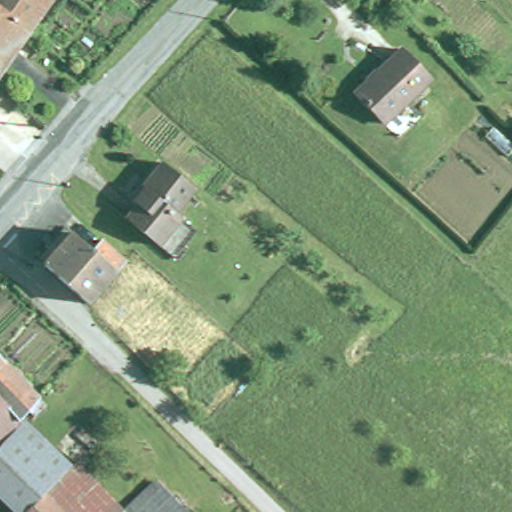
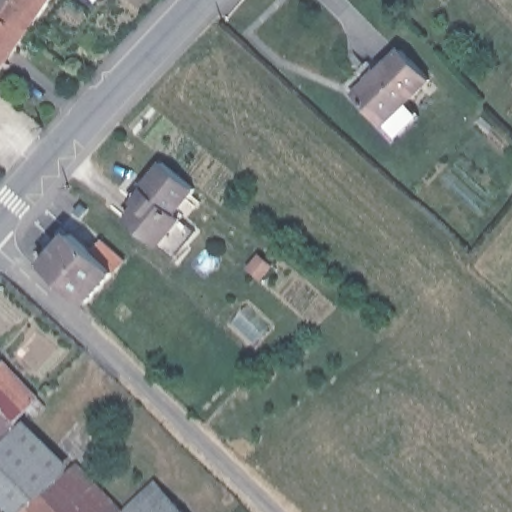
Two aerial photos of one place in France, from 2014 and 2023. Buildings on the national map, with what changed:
unchanged [(0,0),(47,0),(0,66),(0,0)]
unchanged [(403,91),(415,107),(392,128),(350,80),(397,39),(427,71),(403,91)]
unchanged [(179,207),(202,227),(178,252),(132,213),(142,200),(135,194),(165,159),(197,185),(179,207)]
unchanged [(88,295),(44,256),(74,222),(95,242),(107,231),(128,250),(88,295)]
unchanged [(25,408),(0,437),(0,344),(45,387),(25,408)]
unchanged [(0,437),(25,408),(75,463),(78,460),(124,511),(123,512),(22,512),(14,504),(0,489),(0,437)]
unchanged [(158,478),(189,512),(123,512),(124,511),(158,478)]
unchanged [(10,507),(15,512),(5,512),(10,507)]

